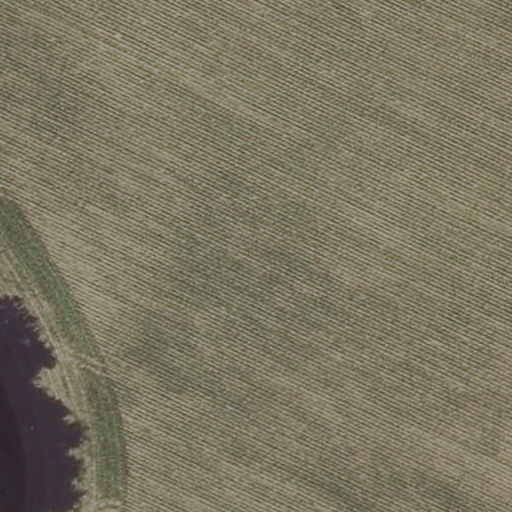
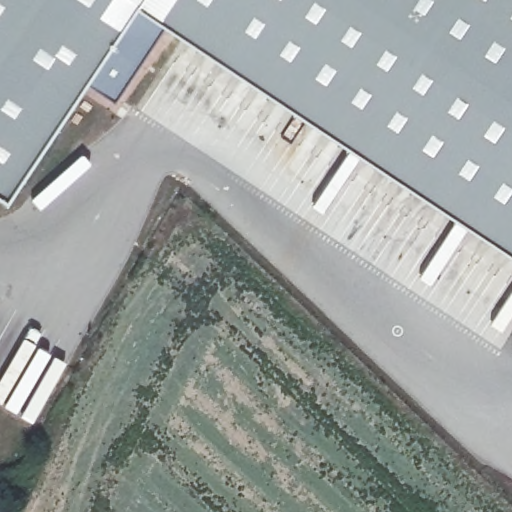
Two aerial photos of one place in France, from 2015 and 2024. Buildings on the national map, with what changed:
new [(512,255),(166,26),(112,103),(80,81),(2,197),(0,196),(0,0),(512,0),(512,255)]

